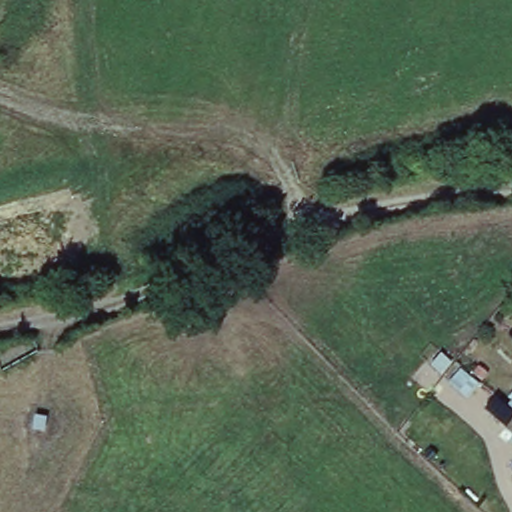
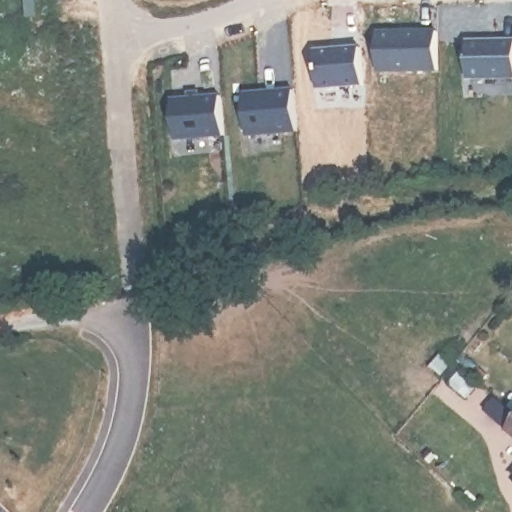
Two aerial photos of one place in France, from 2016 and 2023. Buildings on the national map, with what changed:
new [(436,37),(436,77),(378,79),(379,38),(436,37)]
new [(512,82),(464,82),(462,45),(512,45),(512,82)]
new [(364,48),(367,97),(315,96),(313,49),(364,48)]
new [(293,93),(293,144),(243,146),(243,96),(293,93)]
new [(229,97),(228,148),(168,149),(167,101),(229,97)]
unchanged [(504,412),(512,403),(512,402),(512,419),(504,412)]

